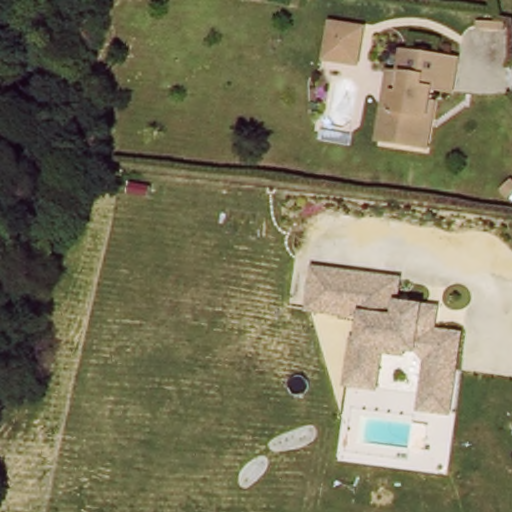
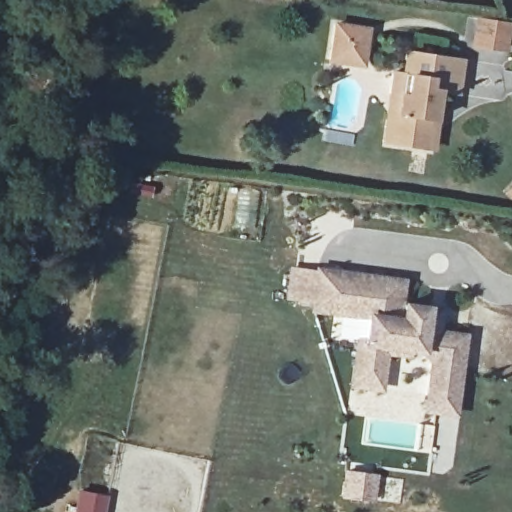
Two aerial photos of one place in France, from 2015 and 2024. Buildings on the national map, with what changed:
unchanged [(335,21),(366,26),(361,62),(329,57),(335,21)]
unchanged [(395,90),(397,73),(408,72),(412,51),(466,59),(461,93),(443,90),(434,147),(398,142),(389,140),(395,90)]
unchanged [(405,282),(401,306),(443,312),(440,334),(467,338),(457,420),(423,416),(430,368),(387,360),(382,394),(349,388),(354,342),(364,343),(368,323),(309,315),(312,270),(405,282)]
new [(105,512),(73,512),(78,489),(108,496),(105,512)]

